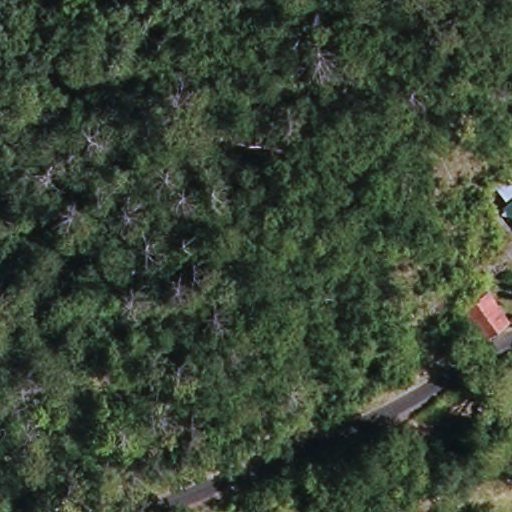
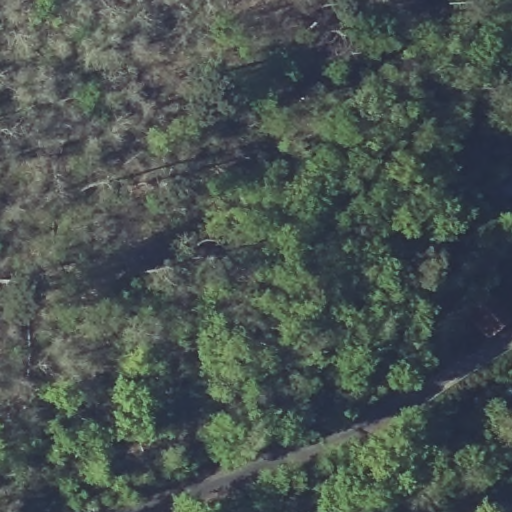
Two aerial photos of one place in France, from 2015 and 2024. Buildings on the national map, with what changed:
unchanged [(458,316),(477,296),(501,322),(483,343),(458,316)]

